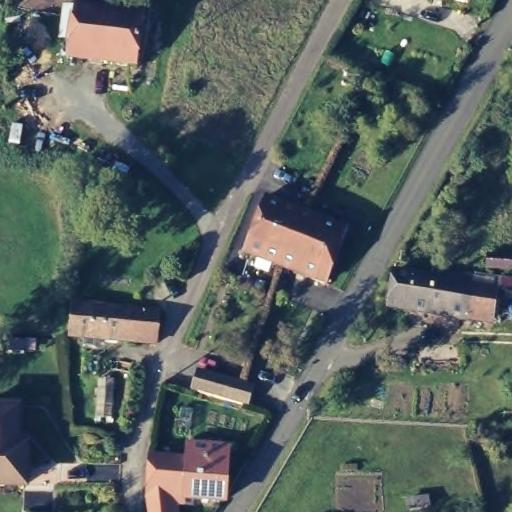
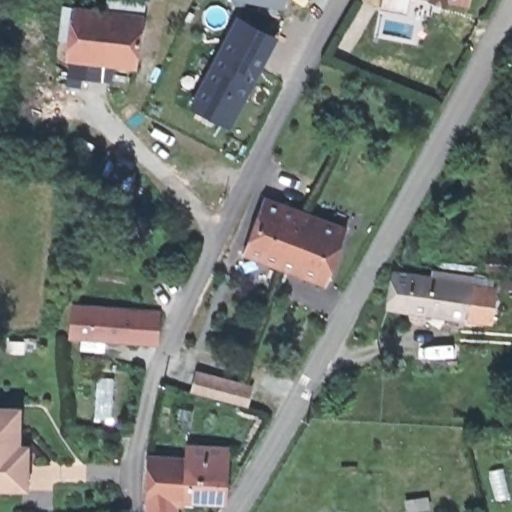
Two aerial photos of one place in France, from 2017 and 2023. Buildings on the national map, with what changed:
new [(283,9),(244,0),(285,0),(283,9)]
unchanged [(67,47),(72,9),(140,16),(135,65),(104,61),(67,56),(67,47)]
new [(236,15),(276,36),(229,128),(188,105),(236,15)]
unchanged [(265,199),(347,225),(325,278),(305,272),(279,261),(277,258),(262,254),(257,255),(244,249),(260,206),(265,199)]
unchanged [(490,317),(467,315),(390,305),(395,272),(472,282),(495,286),(490,317)]
unchanged [(159,307),(158,336),(75,330),(75,301),(159,307)]
unchanged [(252,385),(247,402),(195,389),(200,370),(252,385)]
unchanged [(18,404),(12,441),(22,443),(17,480),(0,477),(0,401),(18,404)]
unchanged [(152,498),(154,453),(188,456),(190,443),(227,446),(226,496),(188,495),(187,490),(169,487),(167,498),(170,512),(155,512),(154,502),(152,498)]

